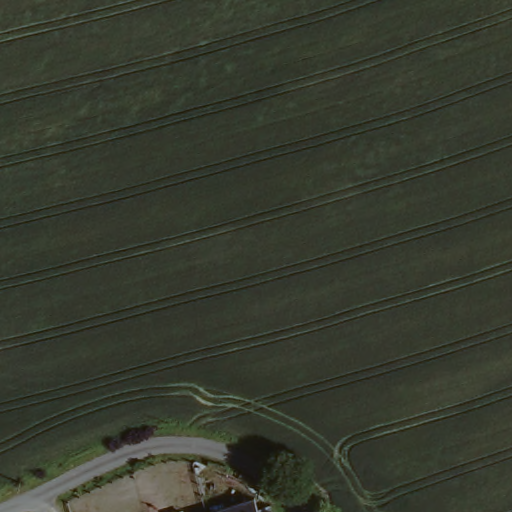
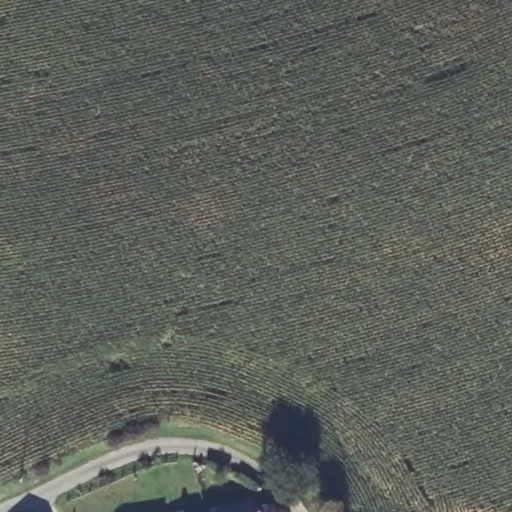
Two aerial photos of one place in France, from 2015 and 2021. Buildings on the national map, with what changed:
unchanged [(257,499),(261,512),(211,512),(257,499)]

